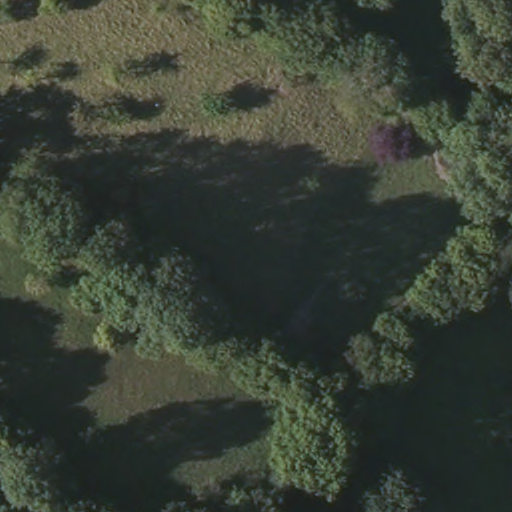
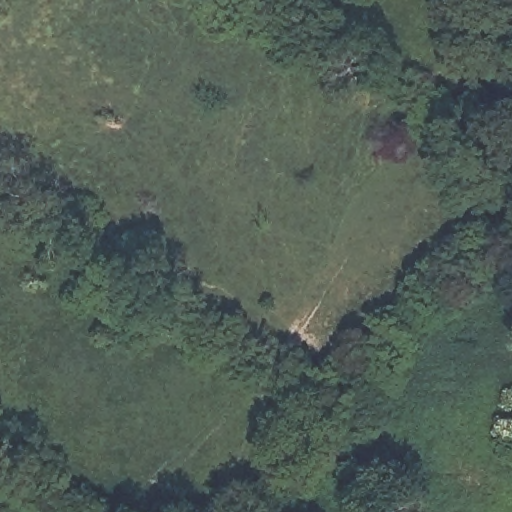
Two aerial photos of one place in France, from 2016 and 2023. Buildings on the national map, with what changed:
[]

